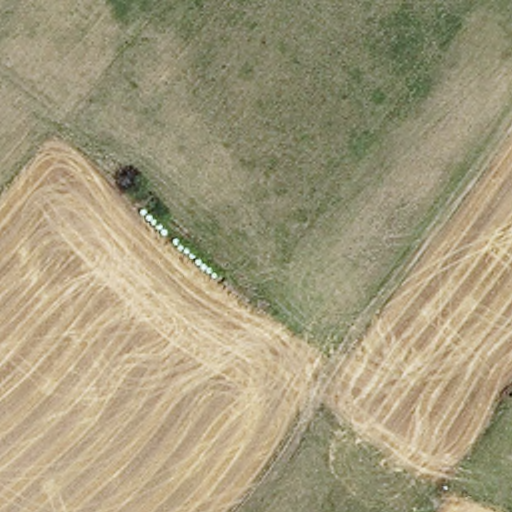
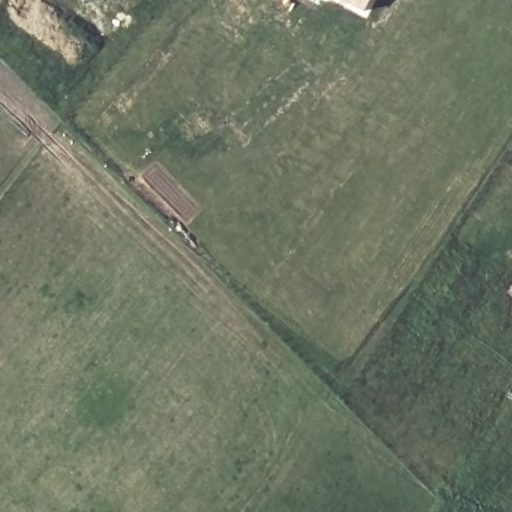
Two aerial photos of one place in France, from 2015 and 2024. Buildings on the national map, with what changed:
new [(335,0),(372,0),(365,15),(335,0)]

